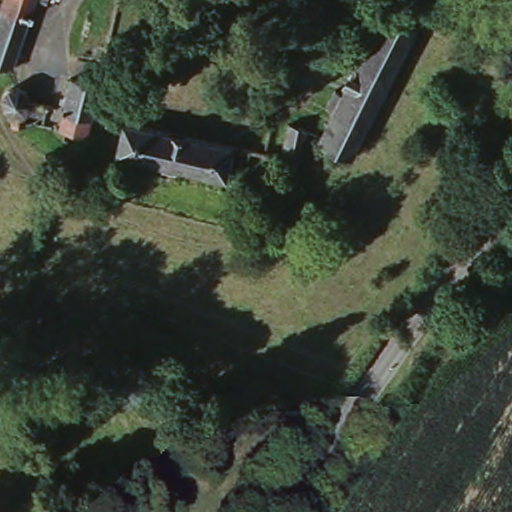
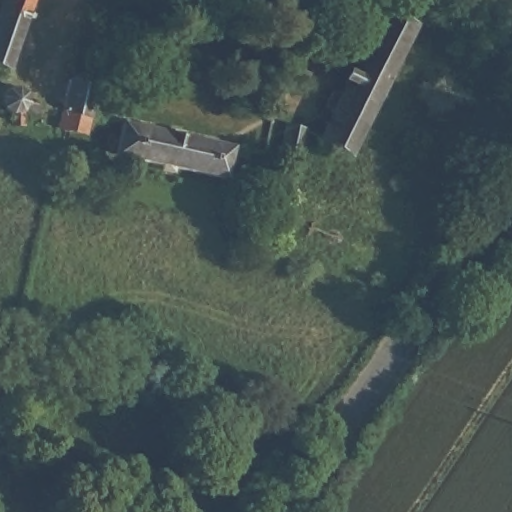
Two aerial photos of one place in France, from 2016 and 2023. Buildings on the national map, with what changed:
unchanged [(0,68),(0,0),(36,0),(8,72),(0,68)]
unchanged [(402,37),(337,162),(311,148),(324,126),(317,123),(331,95),(337,99),(375,23),(402,37)]
unchanged [(57,110),(66,79),(96,85),(90,117),(76,114),(73,131),(63,128),(66,112),(57,110)]
unchanged [(3,112),(2,112),(1,111),(1,110),(0,109),(0,94),(0,93),(1,93),(1,92),(1,91),(2,91),(2,90),(3,90),(4,90),(4,89),(5,89),(6,89),(7,89),(8,88),(9,88),(10,88),(11,88),(13,88),(14,88),(15,88),(16,88),(17,89),(18,89),(19,89),(20,89),(20,90),(21,90),(21,91),(22,91),(23,92),(23,93),(24,93),(24,94),(25,94),(25,95),(25,96),(26,96),(26,97),(26,98),(26,99),(26,100),(26,101),(26,103),(26,104),(26,105),(26,106),(26,107),(26,108),(25,108),(25,109),(24,109),(24,110),(24,111),(23,111),(23,112),(22,112),(22,113),(21,113),(21,114),(20,114),(19,114),(19,115),(18,115),(17,115),(16,115),(16,116),(15,116),(14,116),(13,116),(11,116),(10,116),(9,116),(8,116),(8,115),(7,115),(6,115),(6,114),(5,114),(4,114),(4,113),(3,113),(3,112)]
unchanged [(226,182),(113,156),(121,124),(233,147),(226,182)]
unchanged [(281,172),(283,163),(275,162),(276,158),(283,129),(303,131),(294,174),(288,173),(281,172)]

